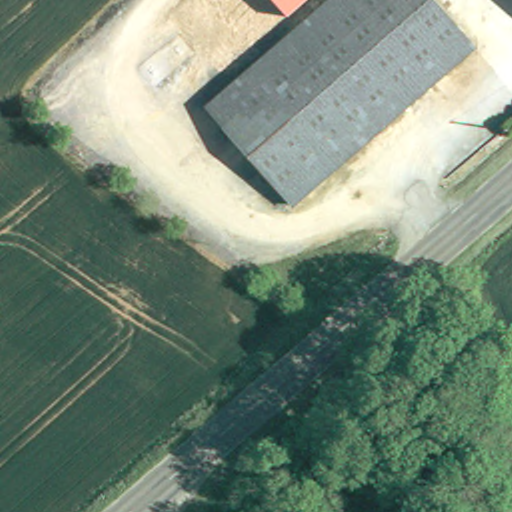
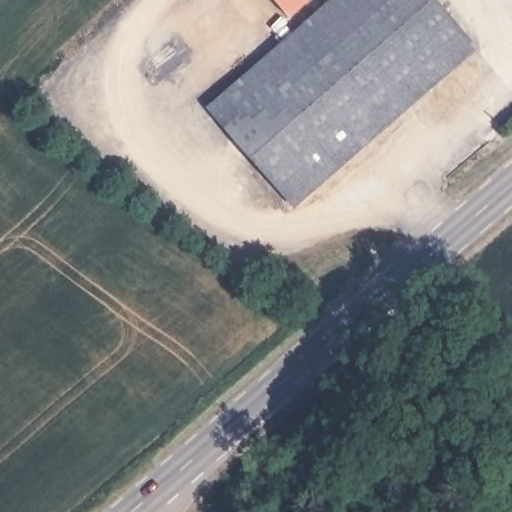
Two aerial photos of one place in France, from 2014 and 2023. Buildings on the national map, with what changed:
unchanged [(339,0),(440,0),(480,47),(293,215),(205,114),(300,34),(339,0)]
unchanged [(290,20),(273,0),(313,0),(290,20)]

